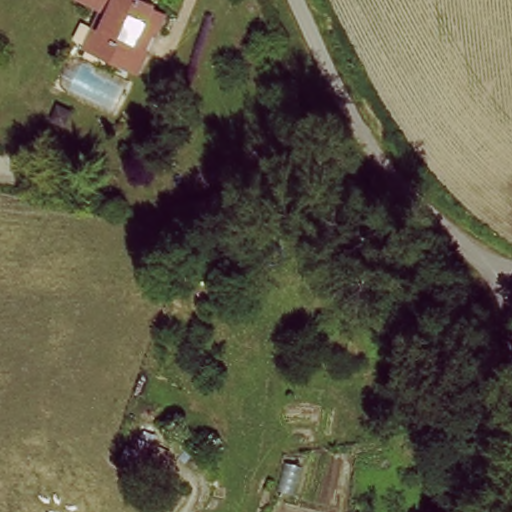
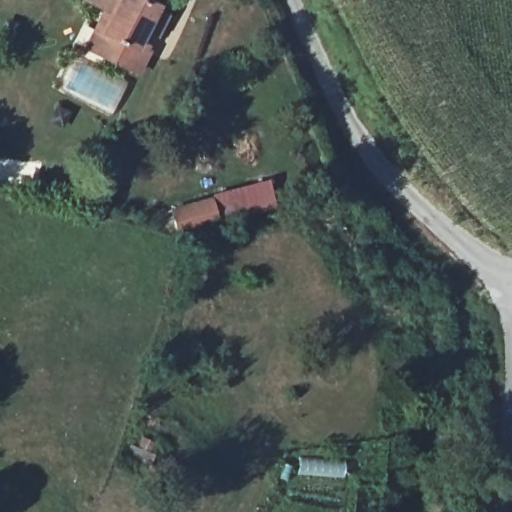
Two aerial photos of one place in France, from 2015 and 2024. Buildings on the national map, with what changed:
unchanged [(101,62),(79,49),(100,9),(86,0),(140,0),(151,6),(149,10),(164,18),(154,36),(142,57),(131,79),(101,62)]
new [(214,197),(212,194),(269,180),(277,209),(219,225),(179,236),(169,210),(214,197)]
unchanged [(158,433),(152,448),(157,452),(154,467),(127,456),(144,427),(158,433)]

